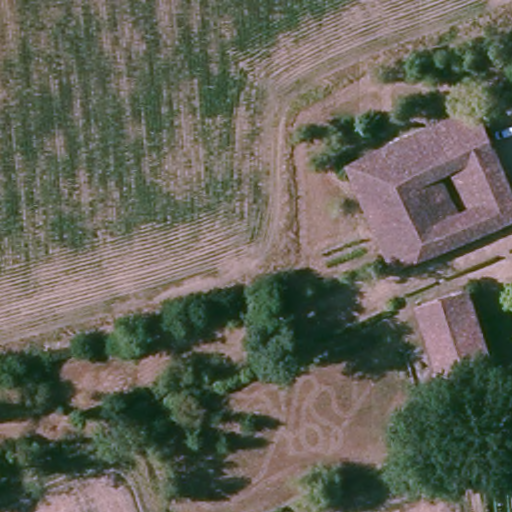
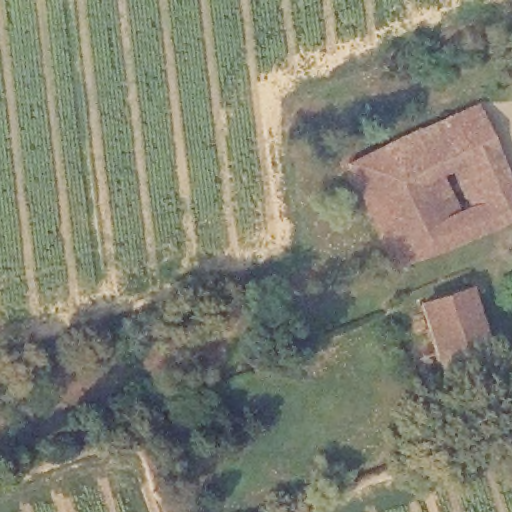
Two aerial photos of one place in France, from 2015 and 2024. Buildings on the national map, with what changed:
unchanged [(477,100),(512,186),(512,212),(394,264),(347,157),(477,100)]
unchanged [(430,307),(476,292),(498,364),(452,379),(430,307)]

